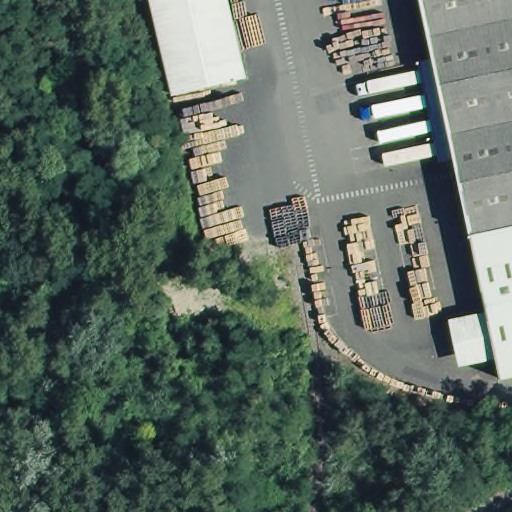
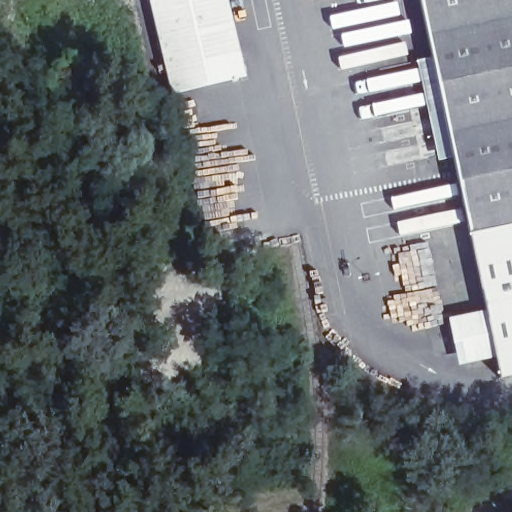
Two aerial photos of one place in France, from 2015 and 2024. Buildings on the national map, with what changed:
unchanged [(154,0),(234,0),(248,70),(173,87),(154,0)]
unchanged [(498,306),(430,0),(512,0),(512,368),(509,355),(498,306)]
unchanged [(509,355),(475,363),(462,314),(498,306),(509,355)]

